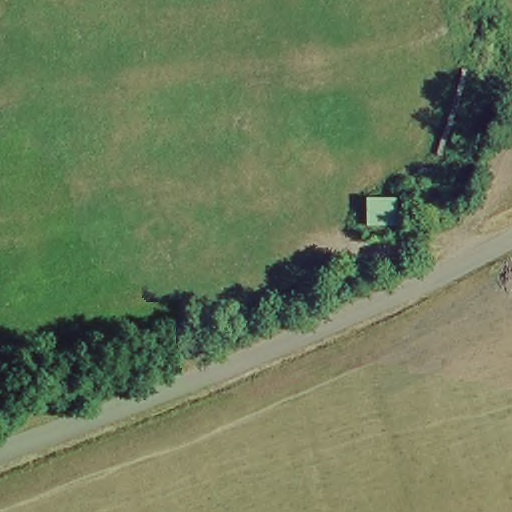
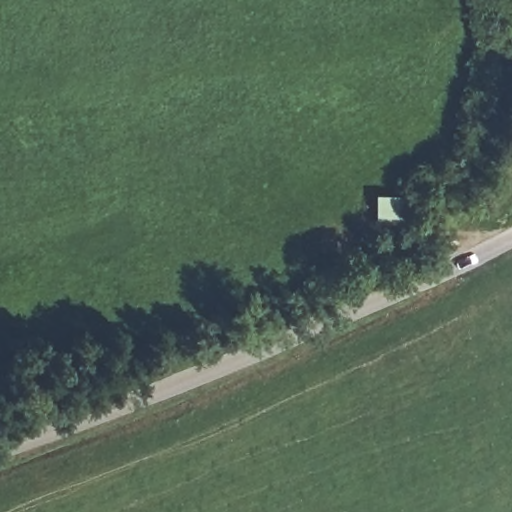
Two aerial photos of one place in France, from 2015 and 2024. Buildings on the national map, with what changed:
unchanged [(406,192),(407,223),(377,228),(377,197),(406,192)]

